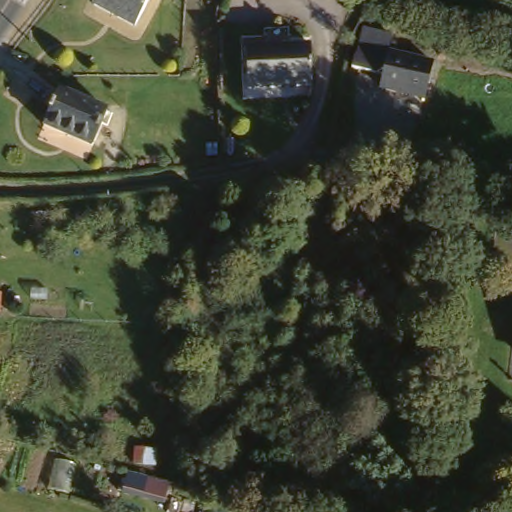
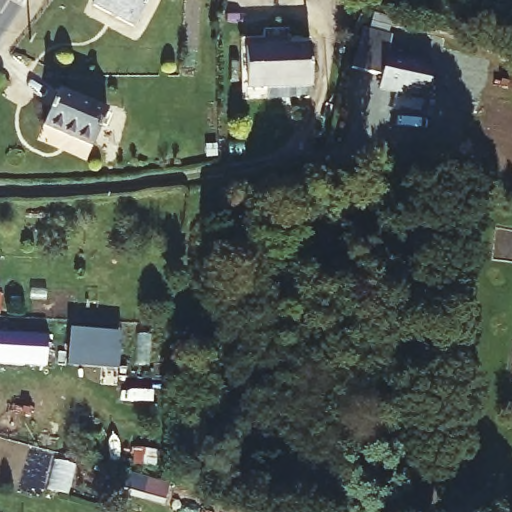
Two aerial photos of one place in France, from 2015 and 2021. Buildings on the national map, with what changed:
unchanged [(147,0),(134,27),(93,5),(96,0),(147,0)]
unchanged [(367,25),(394,32),(392,45),(425,54),(418,89),(383,80),(386,67),(358,60),(367,25)]
unchanged [(246,46),(299,45),(309,45),(309,87),(247,89),(246,46)]
unchanged [(59,90),(106,110),(91,147),(43,126),(59,90)]
new [(70,328),(121,332),(119,370),(68,365),(70,328)]

